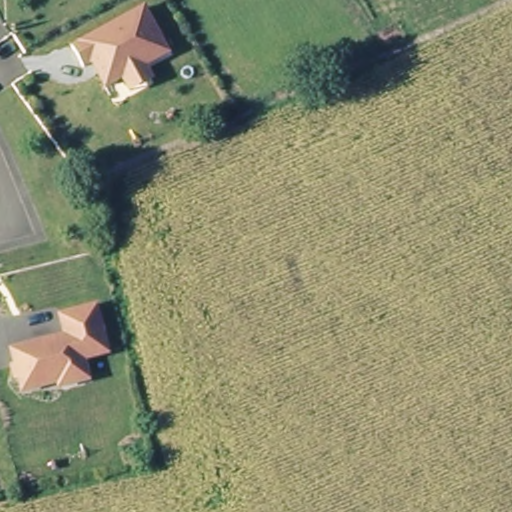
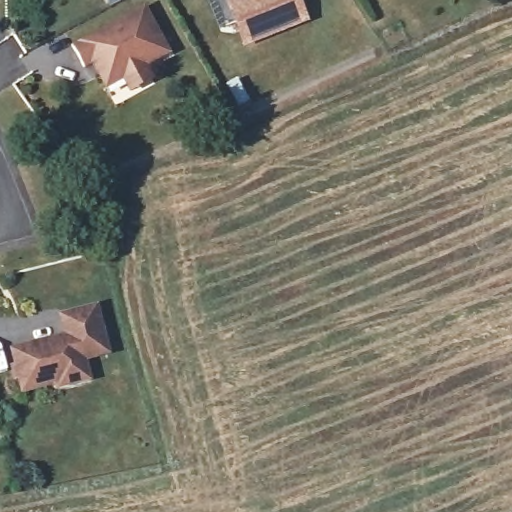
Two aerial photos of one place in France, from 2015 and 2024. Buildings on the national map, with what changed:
new [(243,46),(230,6),(218,11),(214,0),(299,0),(307,21),(243,46)]
unchanged [(133,89),(125,75),(108,85),(100,72),(103,66),(99,60),(94,59),(86,64),(75,44),(146,6),(171,49),(147,63),(155,75),(133,89)]
new [(118,156),(127,172),(110,181),(102,164),(118,156)]
unchanged [(60,392),(59,387),(22,396),(17,380),(16,380),(14,369),(16,368),(12,353),(68,341),(62,319),(98,310),(106,342),(109,358),(85,364),(90,384),(60,392)]

